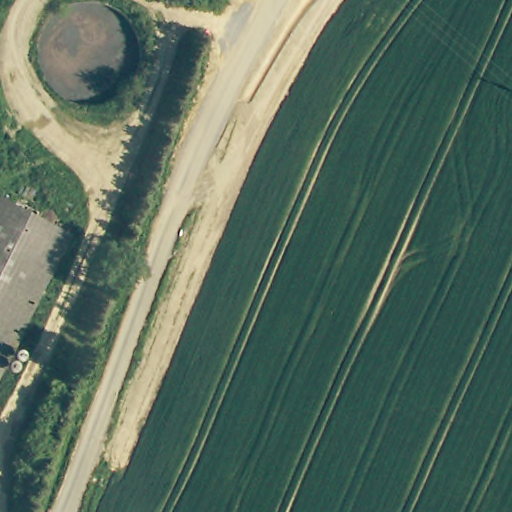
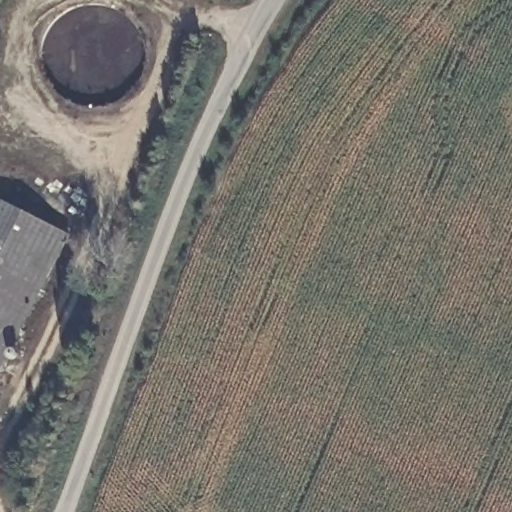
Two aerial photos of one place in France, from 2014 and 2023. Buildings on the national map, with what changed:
unchanged [(0,378),(0,204),(72,238),(0,378)]

